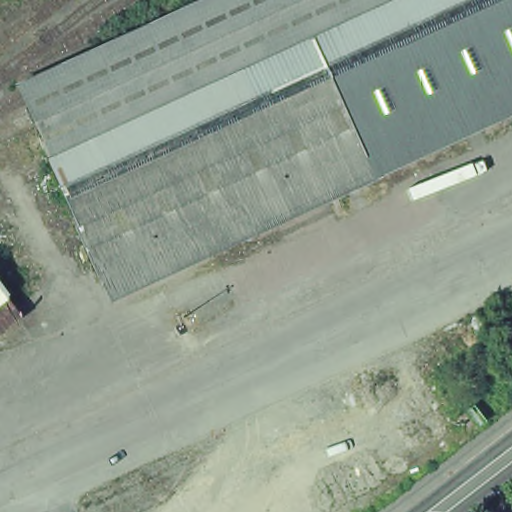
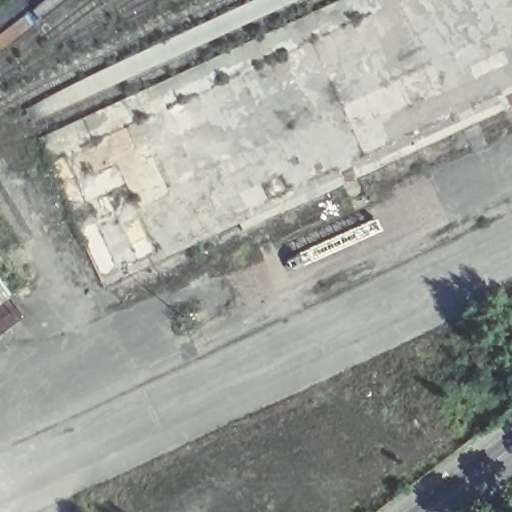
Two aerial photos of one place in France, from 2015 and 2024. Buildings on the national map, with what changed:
demolished [(213,0),(401,0),(50,165),(15,93),(213,0)]
demolished [(50,165),(401,0),(512,0),(512,92),(105,283),(50,165)]
unchanged [(6,298),(0,303),(0,291),(5,296),(6,298)]

